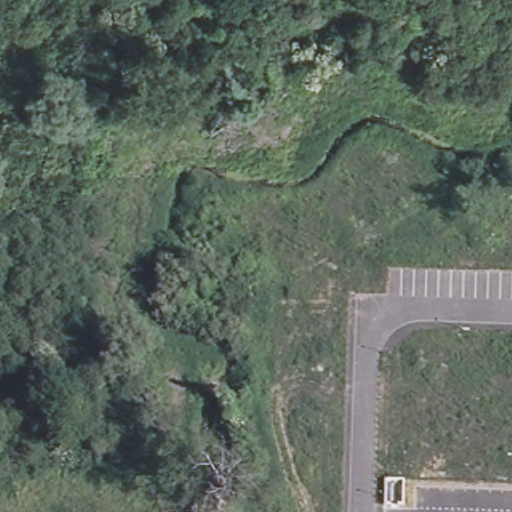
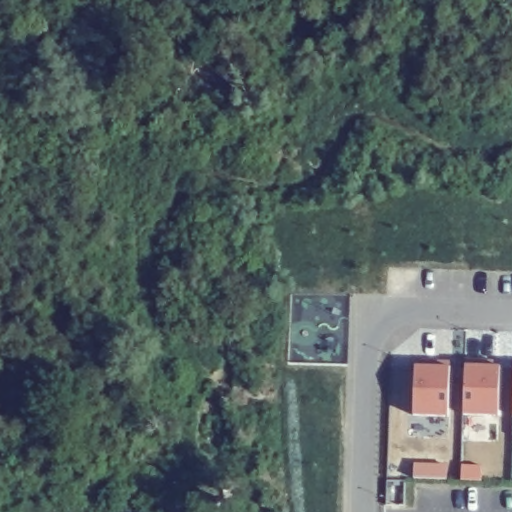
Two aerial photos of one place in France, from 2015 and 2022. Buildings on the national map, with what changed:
new [(466,365),(501,367),(498,417),(463,415),(466,365)]
new [(417,366),(450,368),(448,417),(414,414),(417,366)]

